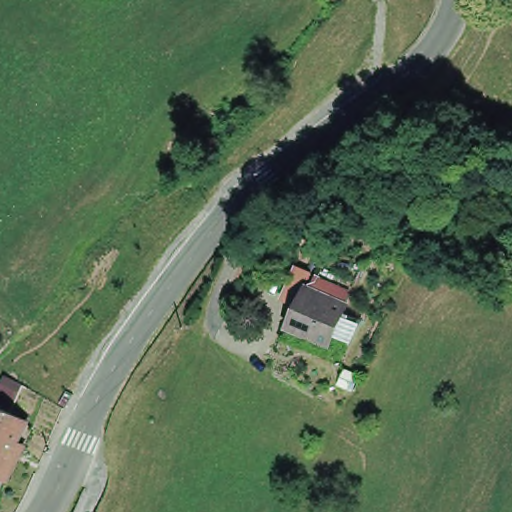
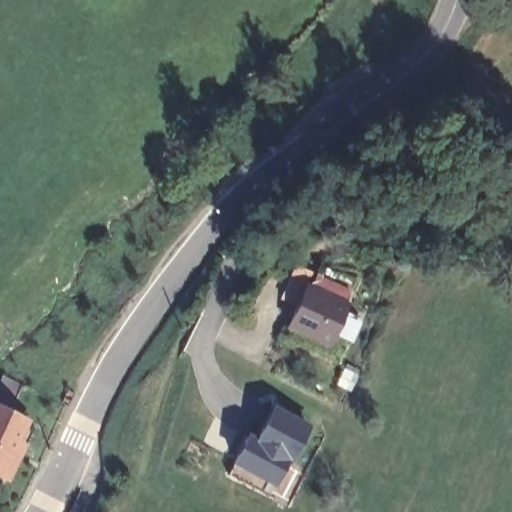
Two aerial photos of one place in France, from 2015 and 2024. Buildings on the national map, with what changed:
unchanged [(352,340),(336,333),(332,341),(330,346),(288,328),(292,318),(307,287),(347,305),(342,317),(359,323),(352,340)]
unchanged [(346,372),(357,376),(352,388),(341,384),(346,372)]
new [(307,427),(290,461),(285,460),(274,482),(235,462),(247,437),(255,441),(270,410),(307,427)]
unchanged [(15,451),(23,455),(8,482),(1,477),(0,480),(0,412),(27,426),(15,451)]

